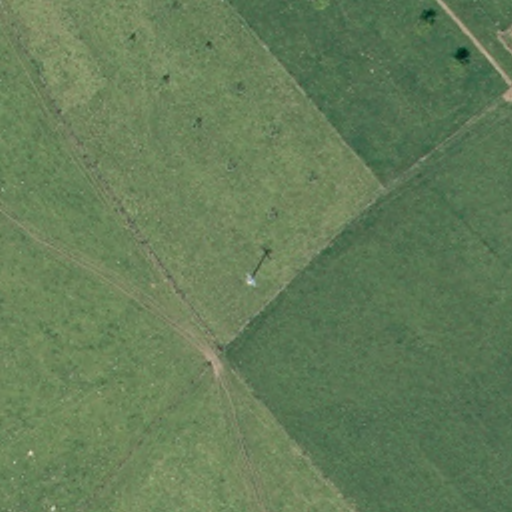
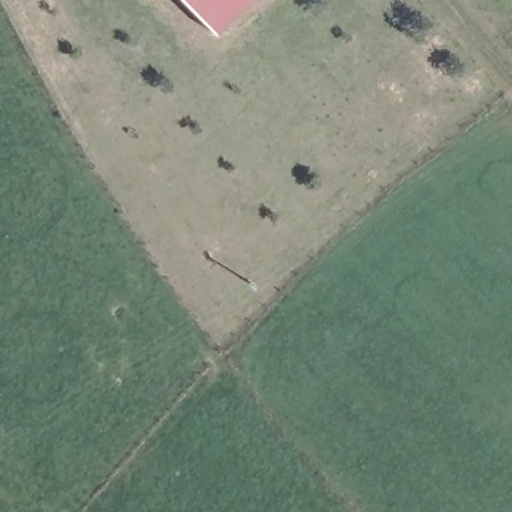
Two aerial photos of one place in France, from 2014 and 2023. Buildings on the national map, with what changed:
demolished [(9,0),(30,0),(13,11),(9,0)]
new [(180,0),(251,0),(215,36),(180,0)]

